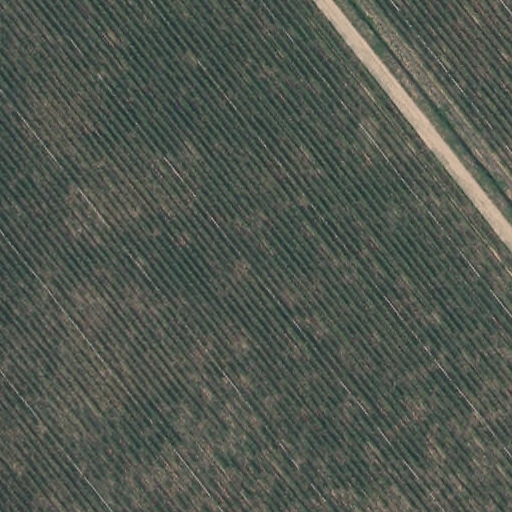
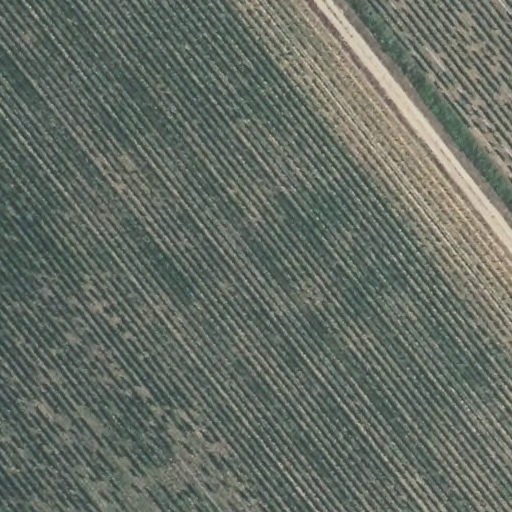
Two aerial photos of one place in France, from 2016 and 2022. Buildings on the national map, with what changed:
[]

